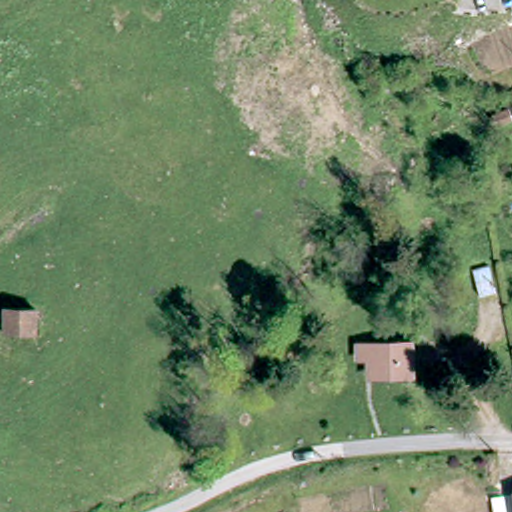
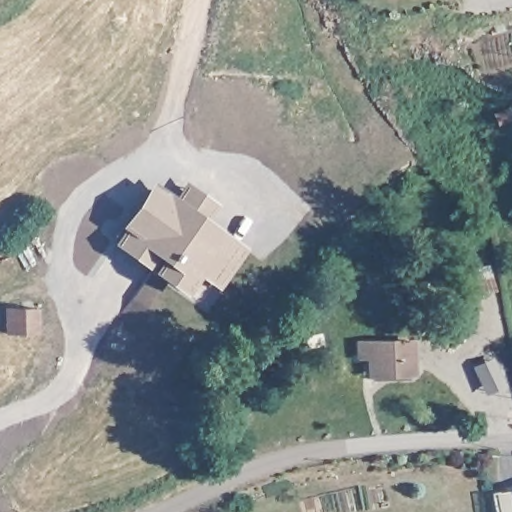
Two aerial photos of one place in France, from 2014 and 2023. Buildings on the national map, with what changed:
new [(155,190),(234,248),(200,295),(120,239),(155,190)]
unchanged [(496,289),(481,291),(476,264),(492,262),(496,289)]
unchanged [(30,331),(0,329),(0,304),(32,306),(30,331)]
unchanged [(372,377),(372,362),(358,362),(358,346),(408,344),(409,373),(409,377),(372,377)]
unchanged [(512,492),(512,498),(510,492),(512,492)]

